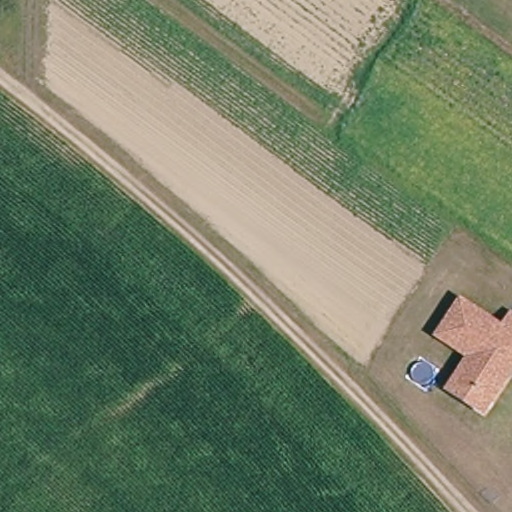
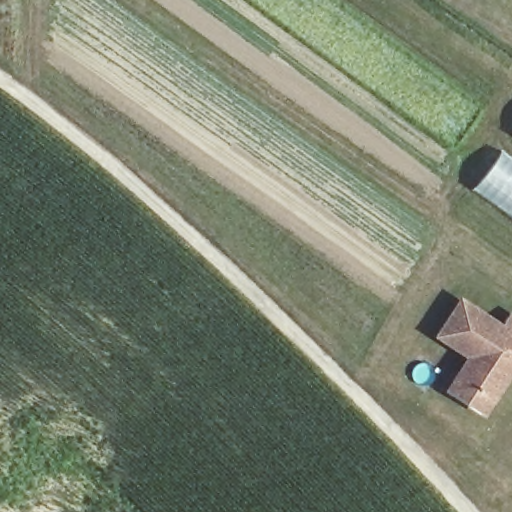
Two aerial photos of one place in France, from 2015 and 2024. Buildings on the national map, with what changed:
new [(512,134),(512,136),(511,135),(512,134)]
new [(498,151),(512,161),(512,218),(470,188),(498,151)]
unchanged [(445,390),(453,378),(468,358),(437,335),(461,302),(502,331),(511,318),(512,318),(512,369),(503,381),(487,402),(479,414),(445,390)]

